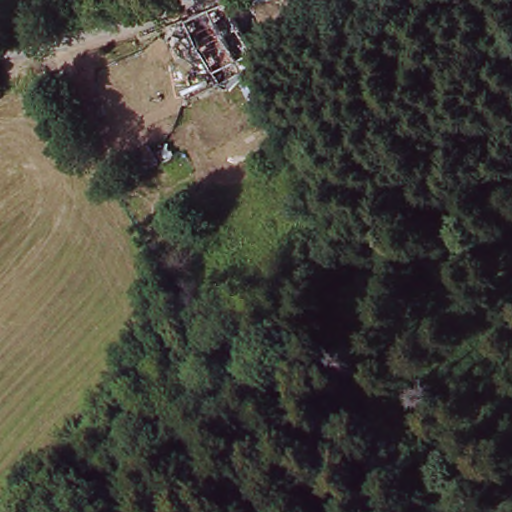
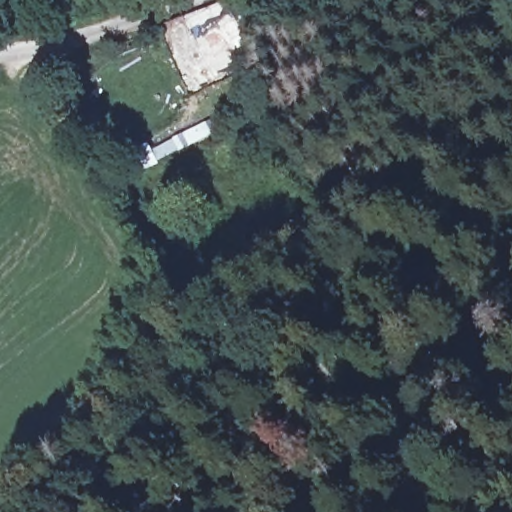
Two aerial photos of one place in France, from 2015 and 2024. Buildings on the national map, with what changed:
unchanged [(253,59),(221,73),(211,47),(191,52),(181,18),(198,14),(232,5),(253,59)]

